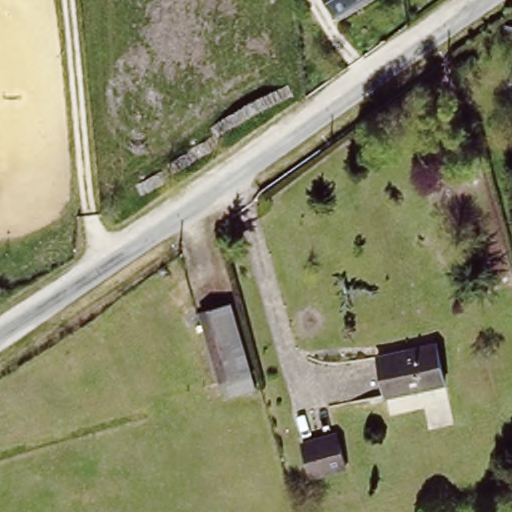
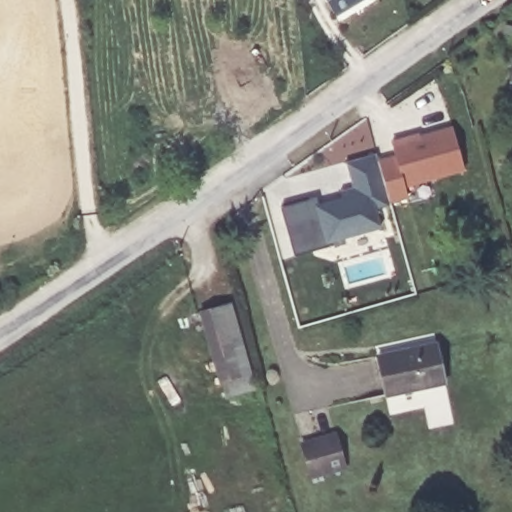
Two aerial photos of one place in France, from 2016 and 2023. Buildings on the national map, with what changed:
unchanged [(324,0),(363,0),(335,17),(324,0)]
new [(417,187),(420,200),(408,202),(407,200),(390,205),(391,207),(376,211),(382,229),(330,244),(330,247),(295,257),(280,208),(316,199),(317,204),(341,197),(340,190),(352,187),(345,162),(377,154),(378,159),(394,155),(390,141),(420,132),(420,135),(453,127),(465,172),(417,187)]
unchanged [(253,385),(225,393),(200,308),(229,300),(253,385)]
unchanged [(445,384),(385,397),(376,357),(435,343),(445,384)]
unchanged [(344,468),(310,477),(300,445),(335,436),(344,468)]

